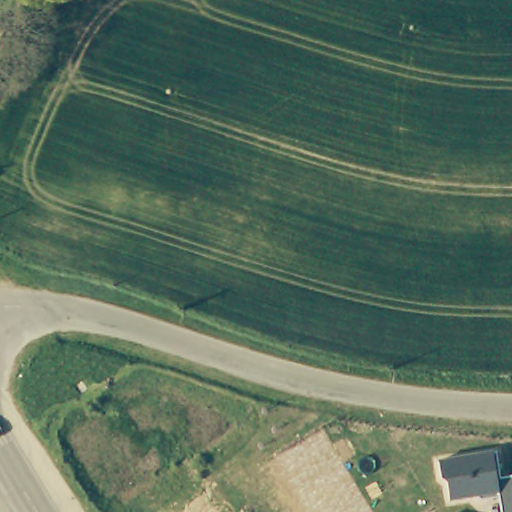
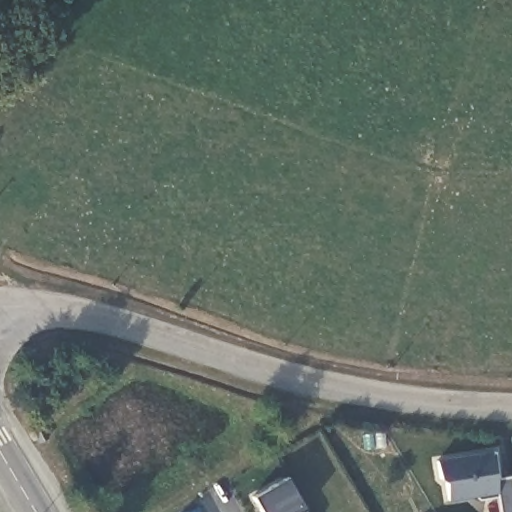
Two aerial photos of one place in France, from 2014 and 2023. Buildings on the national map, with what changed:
unchanged [(512,475),(512,512),(501,512),(498,497),(482,498),(479,496),(450,501),(447,483),(441,479),(439,460),(496,450),(500,477),(512,475)]
new [(305,507),(307,512),(263,512),(254,495),(287,477),(305,507)]

